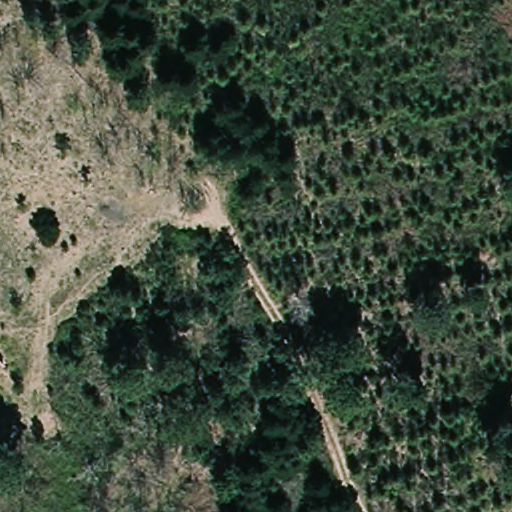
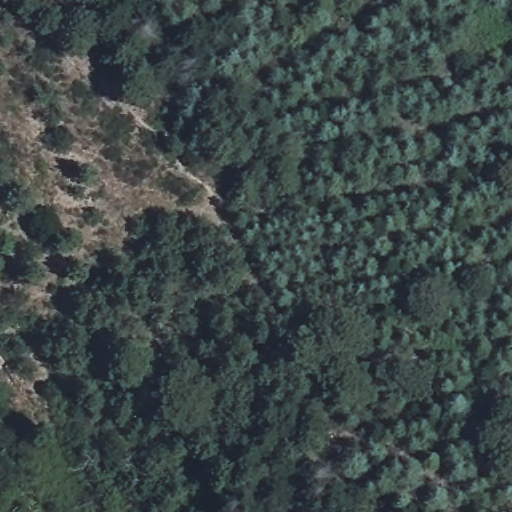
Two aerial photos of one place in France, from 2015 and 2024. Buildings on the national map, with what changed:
unchanged [(3,365),(0,368),(0,361),(3,365)]

